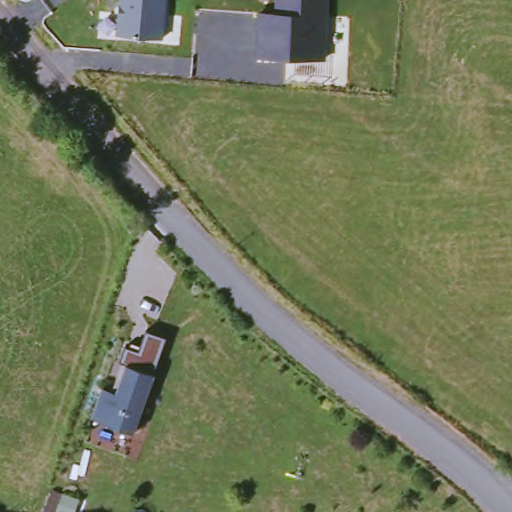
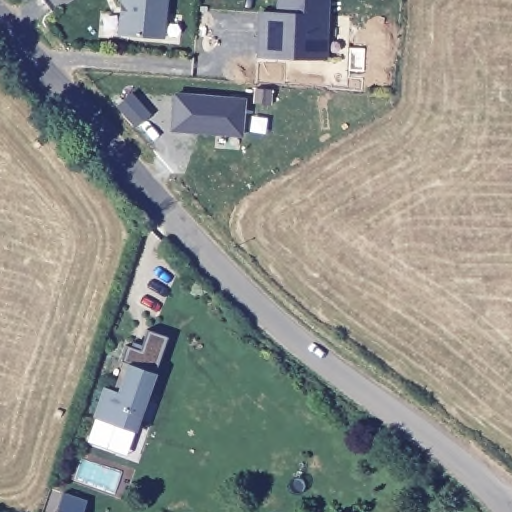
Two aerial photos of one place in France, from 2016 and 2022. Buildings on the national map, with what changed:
unchanged [(169,0),(166,39),(119,36),(122,0),(169,0)]
unchanged [(279,9),(279,0),(330,0),(328,61),(259,58),(261,8),(279,9)]
new [(245,98),(242,136),(170,130),(174,91),(245,98)]
unchanged [(94,416),(103,385),(117,389),(128,361),(159,372),(140,432),(94,416)]

